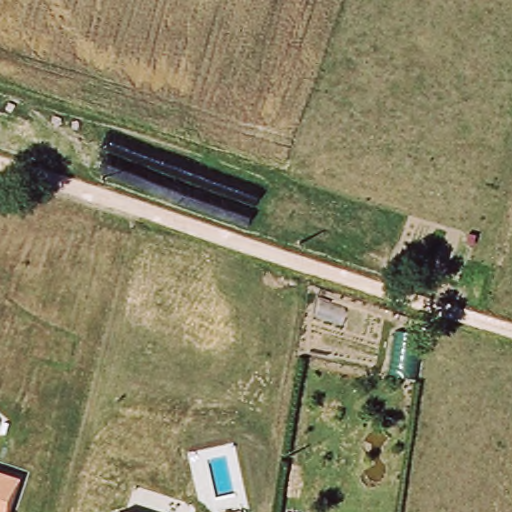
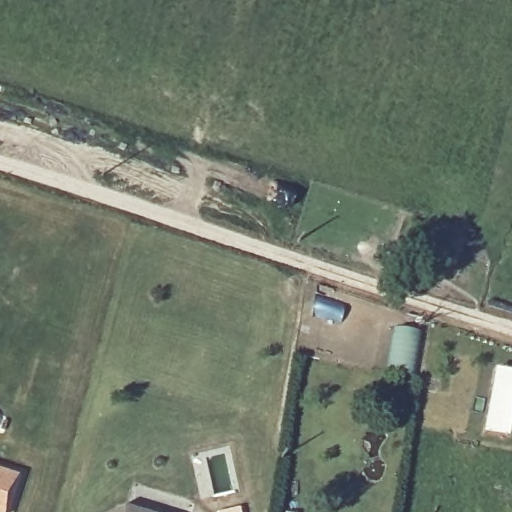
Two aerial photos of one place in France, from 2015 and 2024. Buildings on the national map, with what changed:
new [(484,433),(495,368),(512,371),(512,417),(509,437),(484,433)]
unchanged [(5,512),(0,512),(0,476),(17,482),(5,512)]
unchanged [(123,506),(148,512),(112,512),(123,506)]
new [(238,508),(239,512),(224,512),(238,508)]

